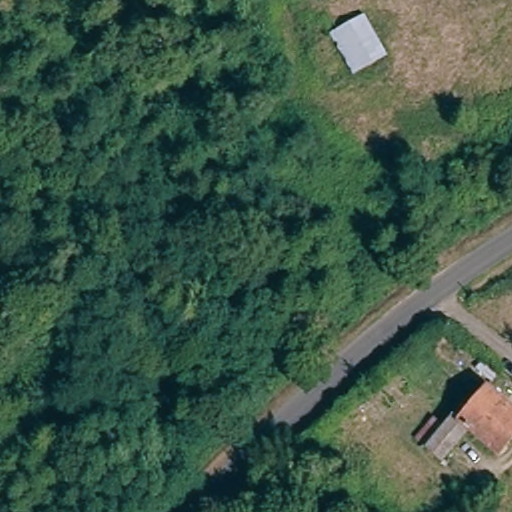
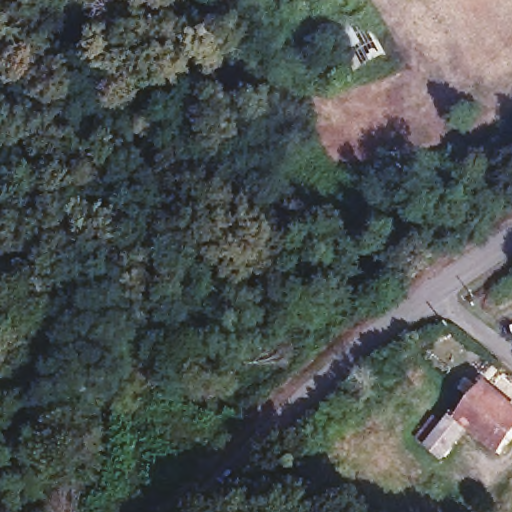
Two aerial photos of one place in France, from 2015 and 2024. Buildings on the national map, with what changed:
unchanged [(329,33),(364,15),(389,57),(354,80),(329,33)]
unchanged [(460,420),(490,388),(512,408),(512,444),(502,456),(471,429),(457,446),(442,465),(423,448),(439,430),(454,415),(460,420)]

